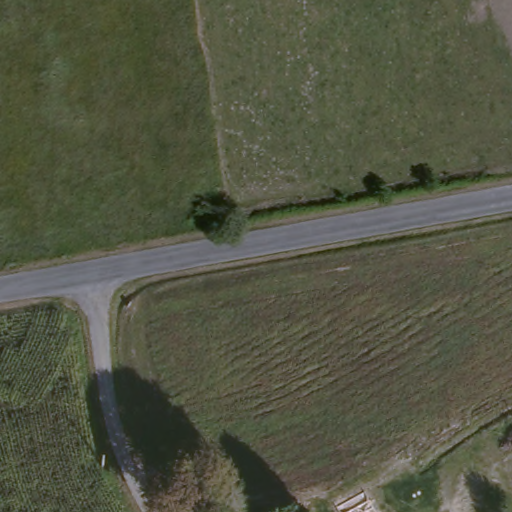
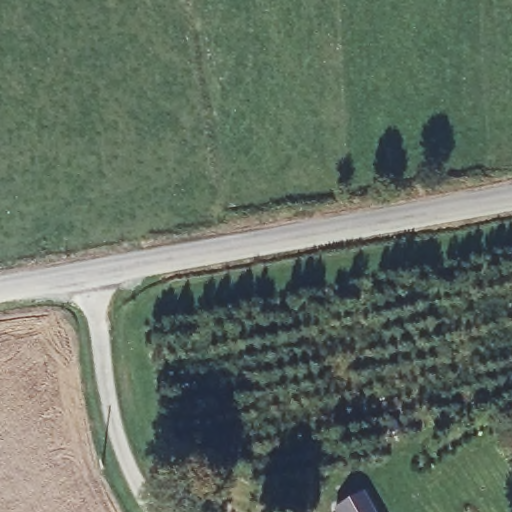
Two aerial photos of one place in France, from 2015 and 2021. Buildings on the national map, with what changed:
new [(367,492),(377,512),(338,512),(337,508),(367,492)]

